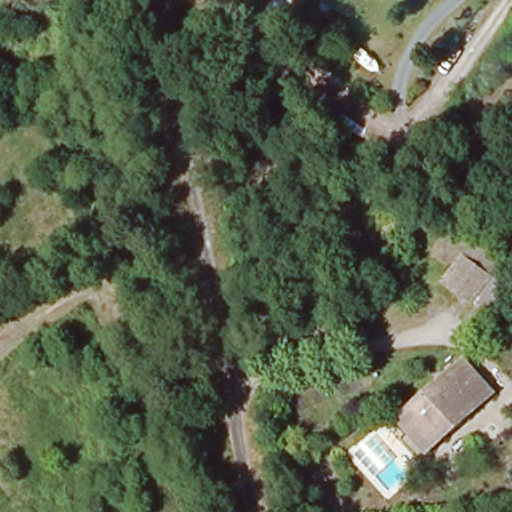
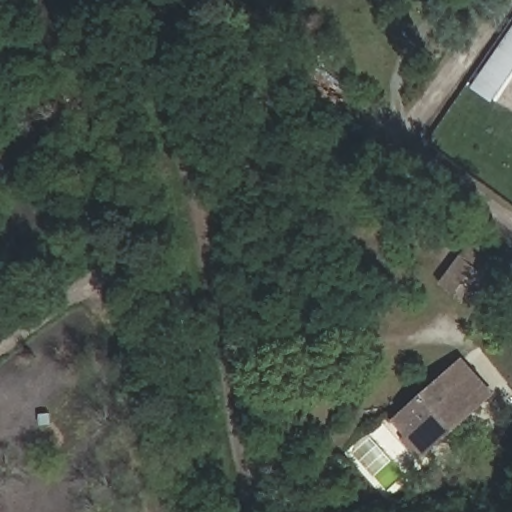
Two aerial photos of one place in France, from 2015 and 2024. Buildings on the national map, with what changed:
new [(494,102),(472,87),(512,28),(512,76),(494,102)]
unchanged [(471,258),(498,279),(480,302),(454,281),(471,258)]
unchanged [(443,439),(426,453),(396,421),(461,363),(480,383),(491,395),(481,404),(470,392),(453,407),(465,419),(443,439)]

